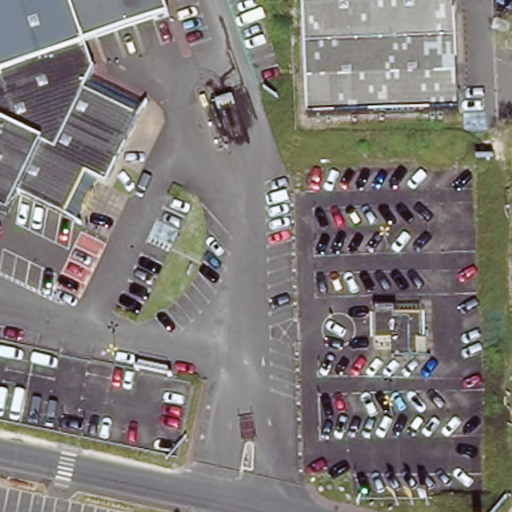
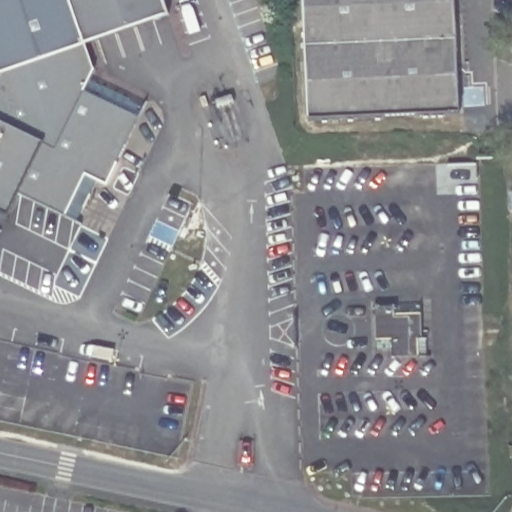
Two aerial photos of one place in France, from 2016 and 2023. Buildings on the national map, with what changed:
unchanged [(95,66),(90,76),(144,104),(105,184),(95,179),(77,218),(19,192),(7,213),(0,210),(0,0),(73,0),(95,66)]
unchanged [(307,9),(307,0),(456,0),(457,1),(307,9)]
unchanged [(457,1),(458,108),(328,111),(310,112),(308,59),(307,9),(457,1)]
unchanged [(373,310),(420,309),(420,331),(420,341),(424,341),(425,359),(390,360),(390,351),(375,351),(375,346),(373,310)]

